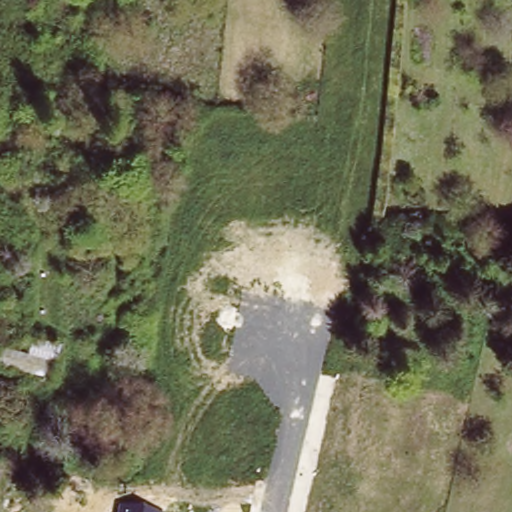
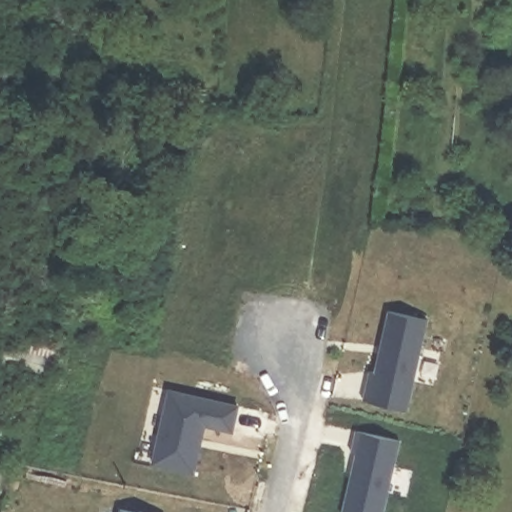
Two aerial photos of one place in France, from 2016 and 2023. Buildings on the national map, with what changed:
new [(364,398),(369,371),(376,373),(389,311),(427,319),(407,409),(364,398)]
unchanged [(4,344),(30,349),(38,334),(63,346),(54,377),(0,362),(0,355),(4,344)]
new [(168,388),(238,403),(233,431),(205,425),(194,473),(152,463),(168,388)]
new [(352,450),(356,430),(399,439),(382,512),(343,512),(357,452),(352,450)]
unchanged [(136,512),(120,512),(121,509),(136,512)]

